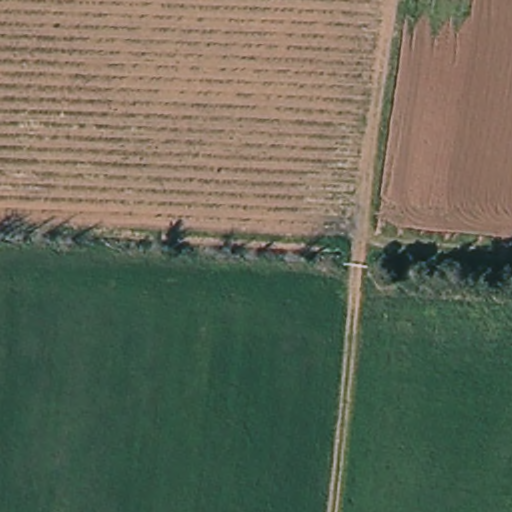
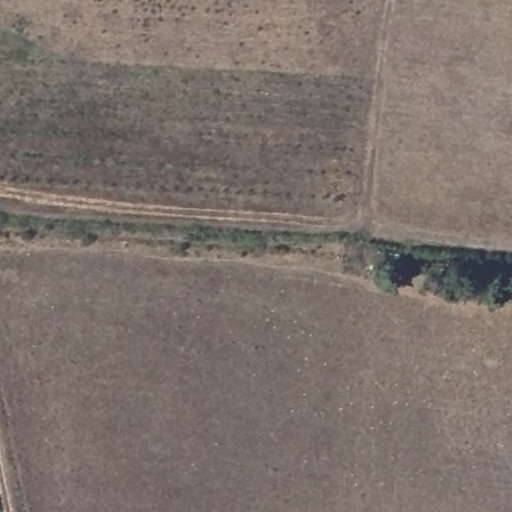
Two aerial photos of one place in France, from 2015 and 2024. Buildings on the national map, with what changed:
[]

